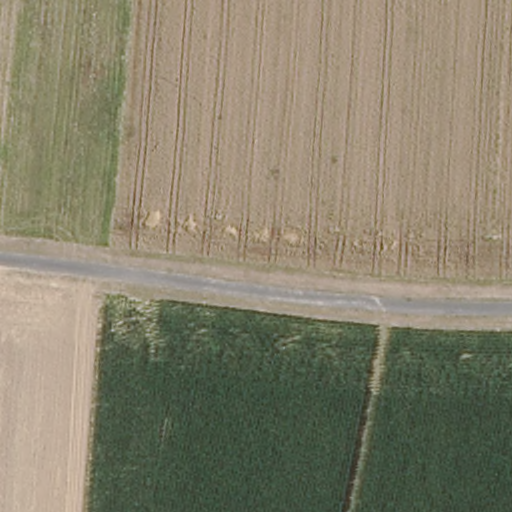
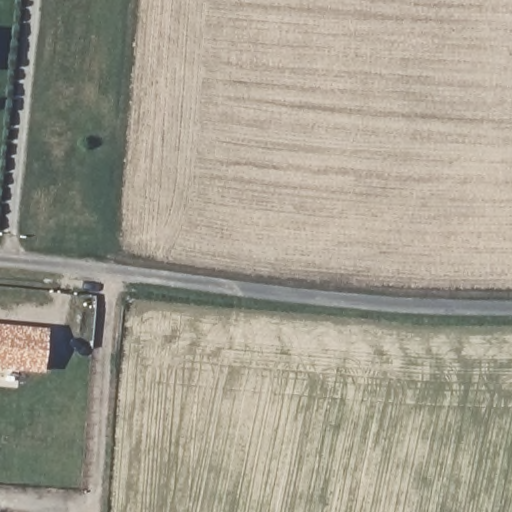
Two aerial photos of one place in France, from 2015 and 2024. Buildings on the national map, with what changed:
new [(48,330),(45,370),(0,366),(0,326),(48,330)]

